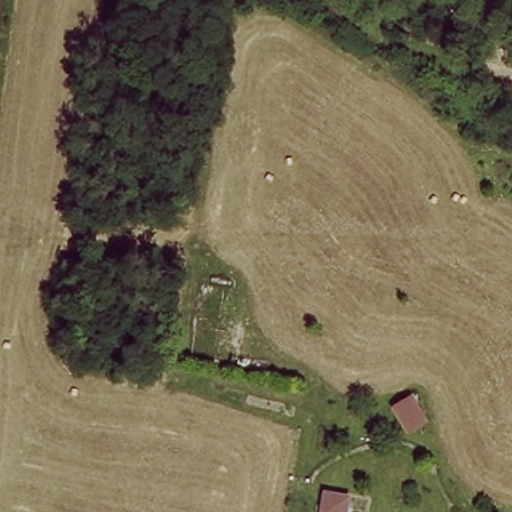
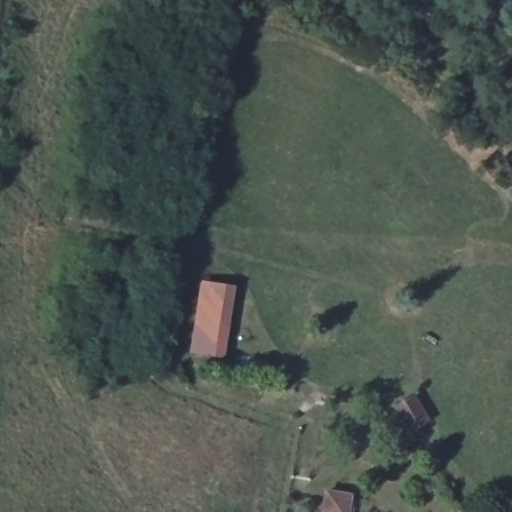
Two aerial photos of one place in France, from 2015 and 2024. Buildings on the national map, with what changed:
new [(200,279),(236,284),(225,360),(187,355),(200,279)]

